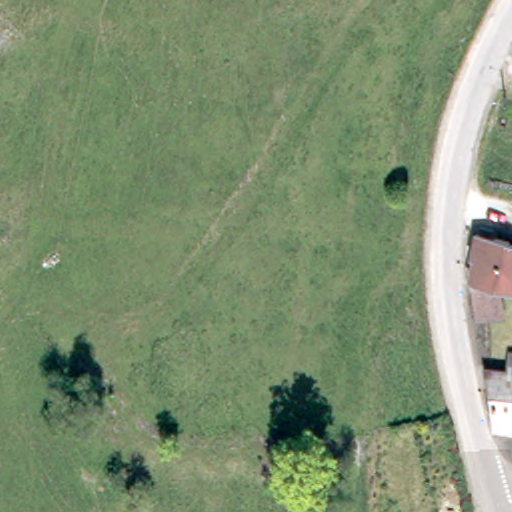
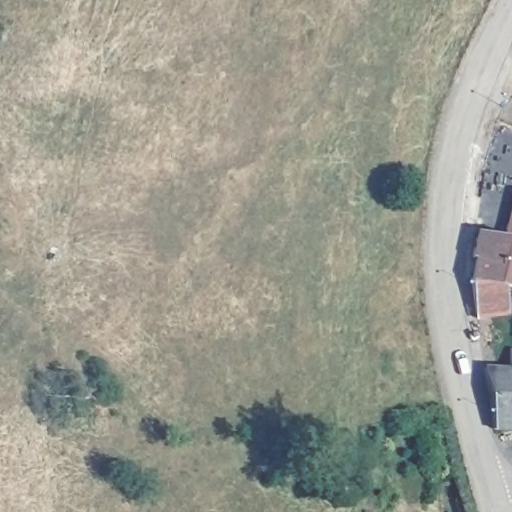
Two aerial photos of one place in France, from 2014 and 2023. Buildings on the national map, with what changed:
unchanged [(468,275),(470,273),(474,256),(470,255),(477,232),(512,240),(512,285),(500,282),(468,275)]
unchanged [(505,310),(473,315),(468,275),(500,282),(505,310)]
unchanged [(482,366),(503,365),(505,348),(512,349),(512,428),(491,426),(482,366)]

